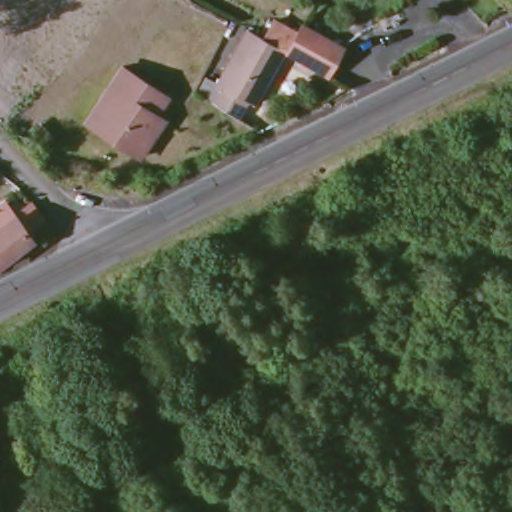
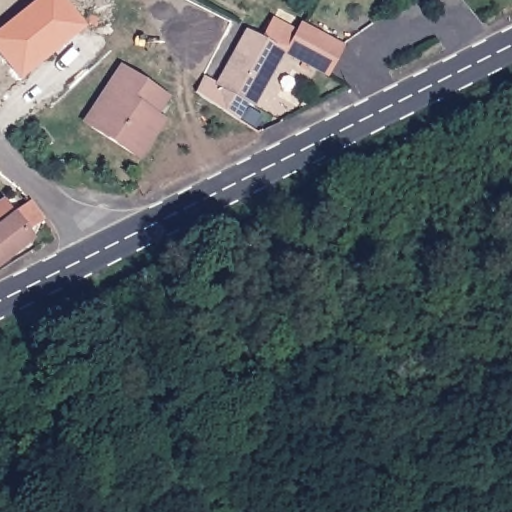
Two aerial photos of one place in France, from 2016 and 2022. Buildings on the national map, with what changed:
new [(40,0),(64,0),(85,27),(22,77),(0,49),(0,31),(40,0)]
unchanged [(206,101),(218,84),(212,80),(245,25),(281,47),(297,22),(345,42),(327,77),(281,52),(254,102),(250,100),(240,116),(206,101)]
unchanged [(150,139),(140,157),(84,127),(115,69),(162,95),(152,113),(161,119),(150,139)]
unchanged [(40,222),(31,227),(36,236),(0,260),(0,200),(10,195),(20,209),(36,201),(44,212),(37,216),(40,222)]

